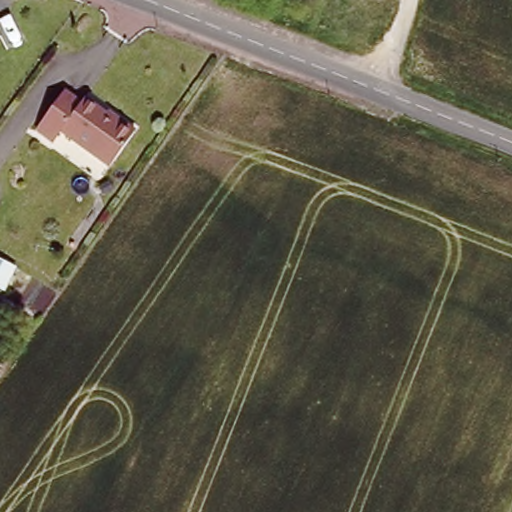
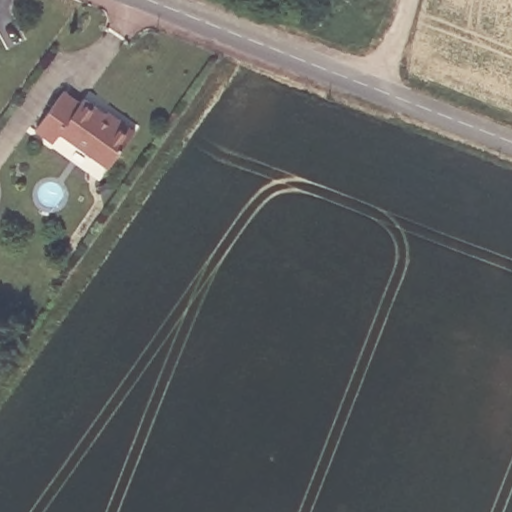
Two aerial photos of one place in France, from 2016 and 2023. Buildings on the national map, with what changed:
unchanged [(76,102),(79,98),(112,122),(114,119),(130,131),(105,166),(56,131),(49,141),(31,129),(59,90),(76,102)]

